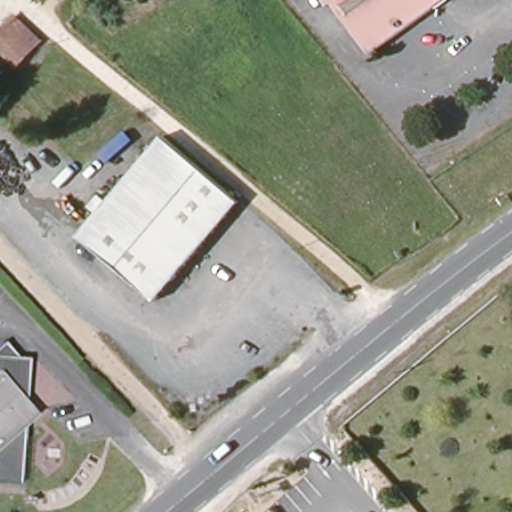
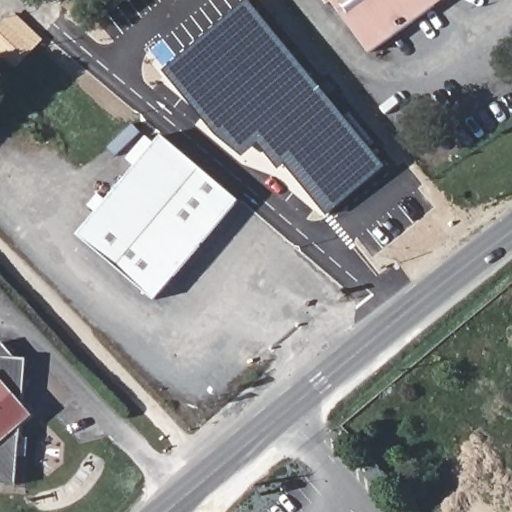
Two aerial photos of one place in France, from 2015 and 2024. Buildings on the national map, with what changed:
new [(330,216),(287,164),(281,169),(261,143),(245,156),(218,135),(165,72),(248,0),(252,0),(387,168),(330,216)]
unchanged [(331,5),(327,0),(338,0),(331,5)]
unchanged [(377,52),(339,0),(450,0),(377,52)]
unchanged [(0,29),(4,25),(12,16),(38,40),(29,49),(16,64),(0,49),(0,29)]
unchanged [(175,280),(111,199),(166,135),(243,200),(175,280)]
unchanged [(79,237),(97,216),(87,207),(99,195),(109,202),(111,199),(175,280),(157,302),(79,237)]
unchanged [(17,360),(28,362),(24,408),(34,420),(21,431),(16,489),(0,489),(0,350),(3,347),(17,360)]

